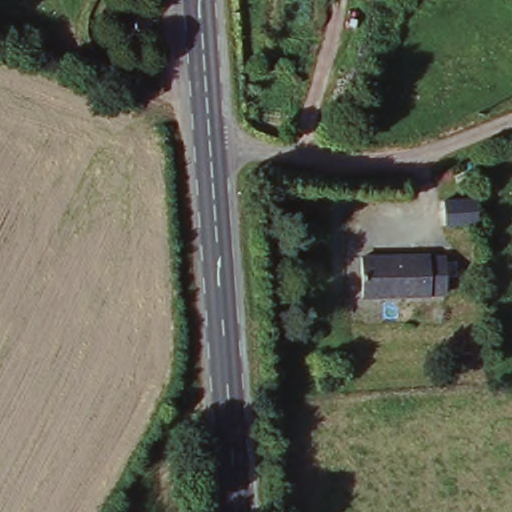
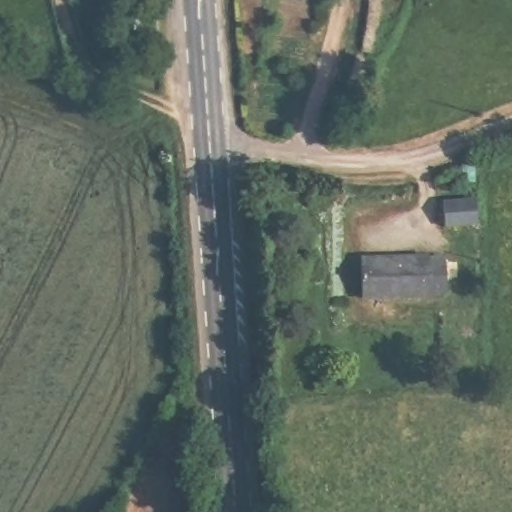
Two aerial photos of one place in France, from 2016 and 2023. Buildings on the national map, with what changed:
unchanged [(430,251),(431,254),(444,252),(447,286),(434,287),(433,290),(365,294),(362,256),(430,251)]

